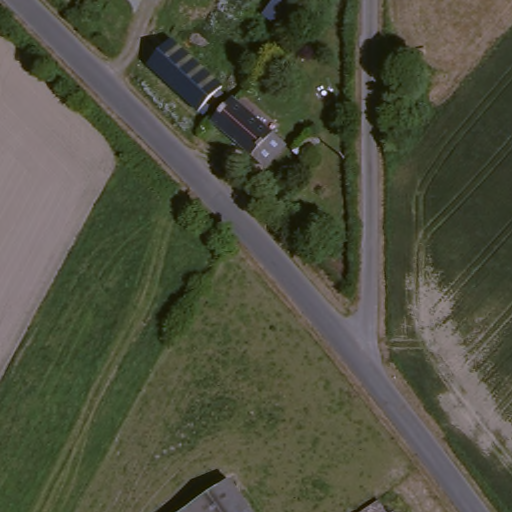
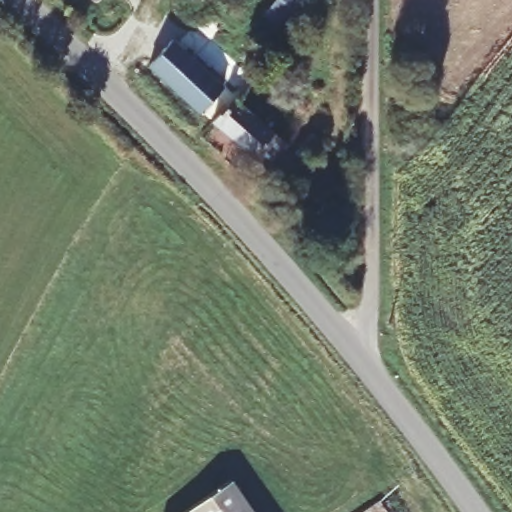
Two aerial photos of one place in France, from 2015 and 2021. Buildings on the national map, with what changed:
unchanged [(288,0),(314,0),(289,31),(273,19),(288,0)]
unchanged [(227,82),(200,114),(145,66),(173,35),(227,82)]
unchanged [(284,139),(263,162),(214,120),(236,96),(284,139)]
unchanged [(320,141),(302,160),(294,153),(311,134),(320,141)]
unchanged [(176,512),(235,474),(261,512),(176,512)]

